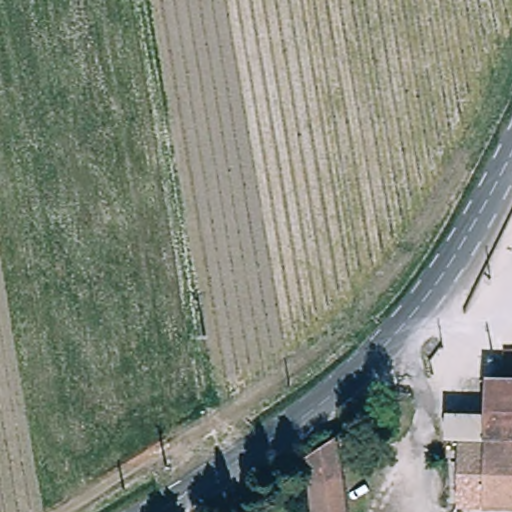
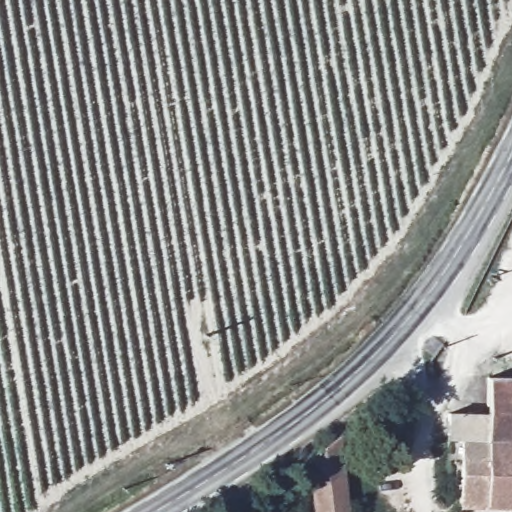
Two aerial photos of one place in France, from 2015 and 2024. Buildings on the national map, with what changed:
unchanged [(491,415),(492,379),(500,379),(500,372),(507,372),(507,379),(512,379),(512,442),(491,442),(491,415)]
unchanged [(451,417),(451,414),(491,415),(491,442),(512,442),(512,507),(450,506),(451,417)]
unchanged [(341,433),(350,512),(315,512),(308,453),(341,433)]

